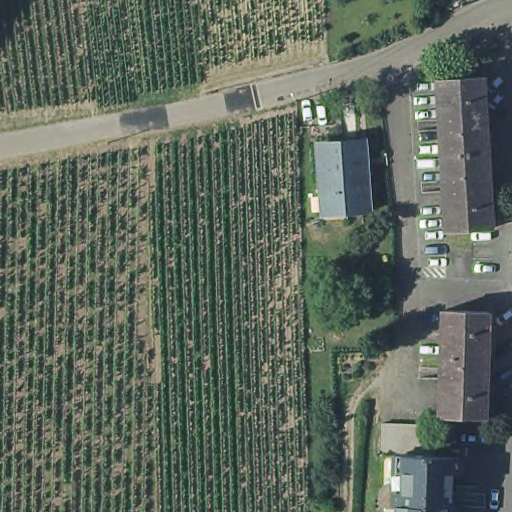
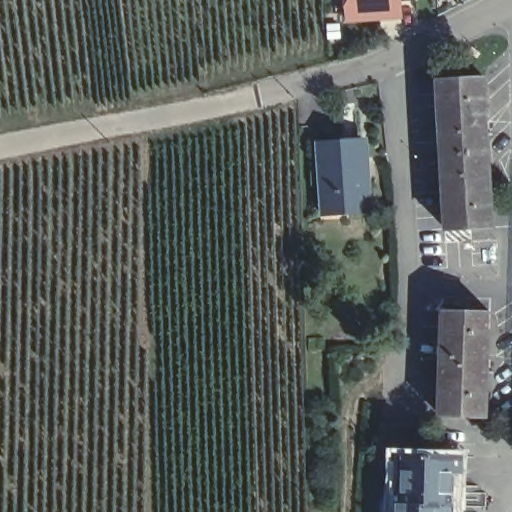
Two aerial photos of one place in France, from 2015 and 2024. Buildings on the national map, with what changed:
new [(417,2),(402,2),(402,22),(342,24),(341,0),(416,0),(417,2)]
unchanged [(486,76),(495,226),(452,229),(442,79),(486,76)]
unchanged [(370,135),(374,182),(378,182),(380,205),(355,206),(356,213),(329,215),(327,190),(329,189),(326,139),(370,135)]
unchanged [(449,308),(492,310),(489,415),(445,413),(449,308)]
unchanged [(439,429),(438,459),(462,460),(462,477),(456,477),(455,512),(399,512),(400,494),(405,494),(405,477),(400,476),(400,474),(406,474),(406,458),(384,457),(385,428),(439,429)]

